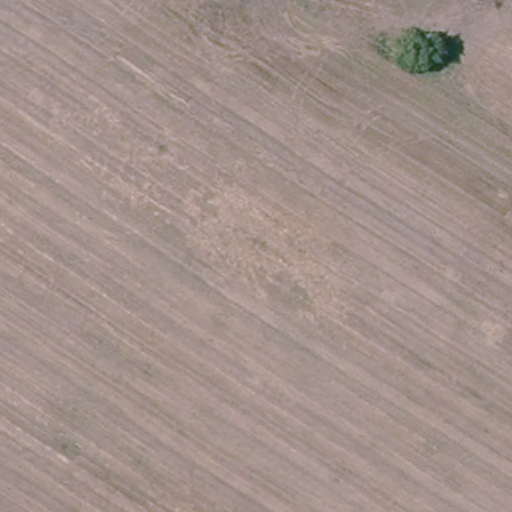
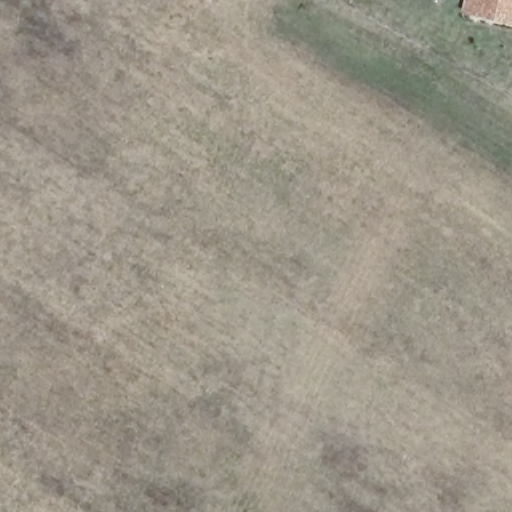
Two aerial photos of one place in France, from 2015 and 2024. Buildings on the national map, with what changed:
new [(463,13),(465,0),(512,0),(512,24),(463,13)]

